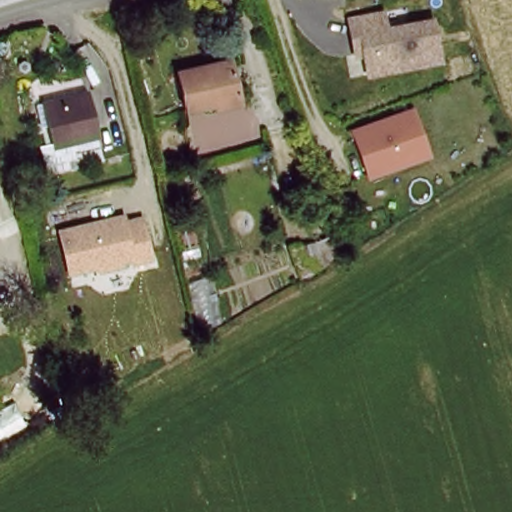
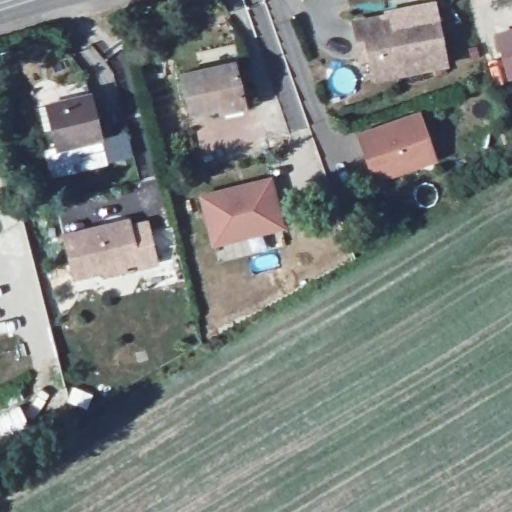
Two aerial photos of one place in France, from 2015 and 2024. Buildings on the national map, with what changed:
unchanged [(390,9),(395,27),(433,19),(442,62),(367,76),(364,57),(355,59),(348,17),(390,9)]
new [(512,29),(512,80),(507,81),(493,35),(512,29)]
unchanged [(244,105),(218,111),(216,104),(188,110),(180,71),(235,60),(244,105)]
unchanged [(38,109),(33,91),(86,81),(92,99),(45,108),(38,109)]
unchanged [(92,99),(100,143),(53,150),(45,108),(92,99)]
unchanged [(415,109),(435,159),(375,182),(356,132),(415,109)]
unchanged [(105,167),(50,181),(43,150),(53,150),(100,143),(105,167)]
new [(198,195),(271,176),(285,229),(212,248),(198,195)]
unchanged [(131,225),(151,220),(160,265),(139,270),(137,266),(73,281),(62,234),(130,218),(131,225)]

